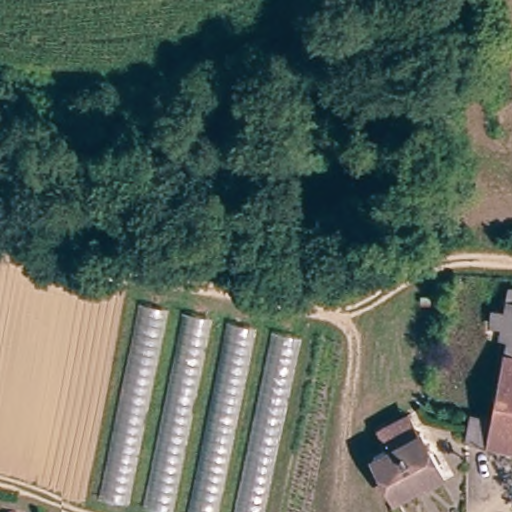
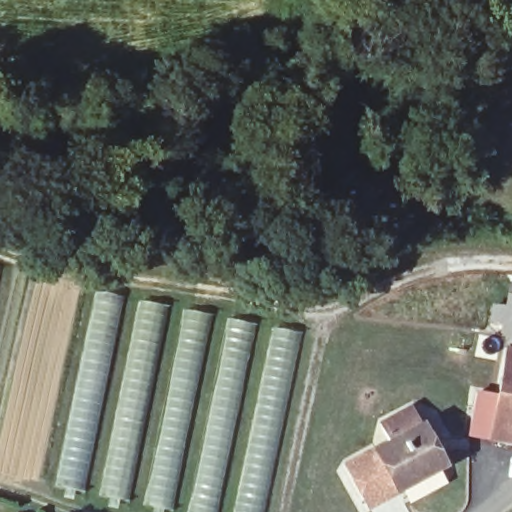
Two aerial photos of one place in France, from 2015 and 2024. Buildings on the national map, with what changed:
new [(55,485),(95,289),(125,295),(83,491),(55,485)]
unchanged [(512,294),(512,335),(506,334),(512,294)]
unchanged [(301,330),(264,512),(189,512),(100,494),(141,298),(301,330)]
unchanged [(484,411),(500,414),(512,335),(512,442),(478,436),(470,435),(475,409),(484,411)]
unchanged [(370,452),(388,440),(377,421),(398,409),(407,404),(418,422),(438,458),(391,487),(370,452)]
new [(344,463),(368,449),(370,452),(391,487),(394,492),(368,507),(344,463)]

